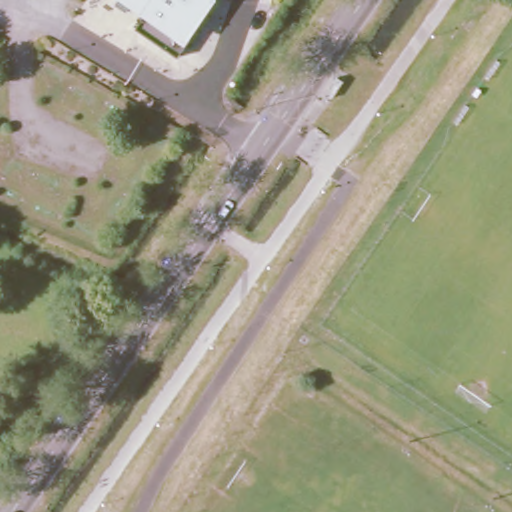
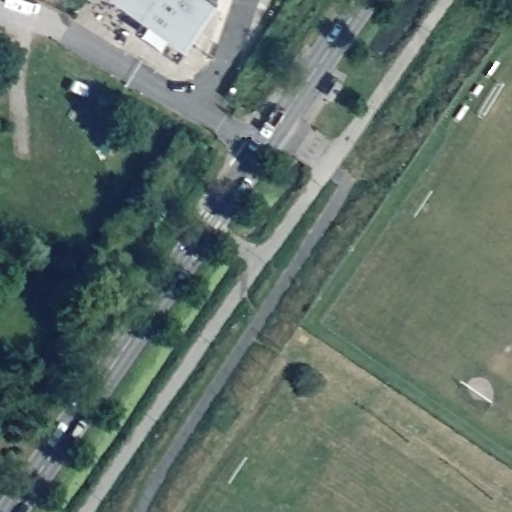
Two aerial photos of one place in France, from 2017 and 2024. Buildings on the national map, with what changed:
unchanged [(132,0),(155,0),(148,11),(132,0)]
unchanged [(140,23),(148,11),(155,0),(218,0),(183,52),(140,23)]

